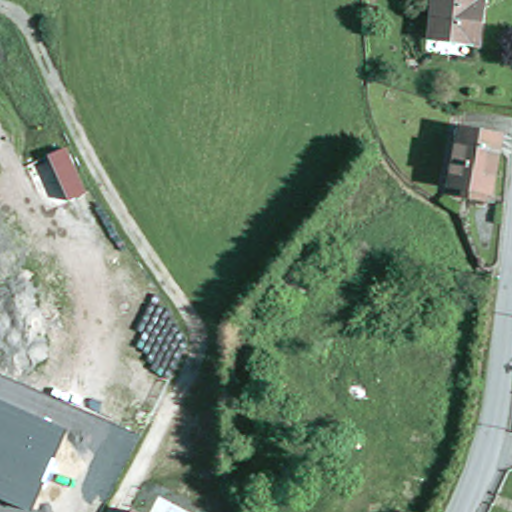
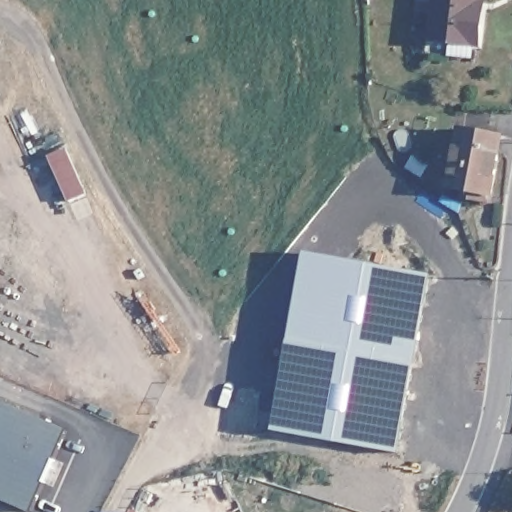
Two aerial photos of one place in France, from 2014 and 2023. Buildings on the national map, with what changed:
unchanged [(480,25),(477,44),(430,38),(435,0),(476,0),(475,3),(483,4),(480,25)]
unchanged [(475,195),(463,193),(465,184),(450,182),(460,124),(502,132),(492,190),(488,189),(486,198),(475,195)]
unchanged [(54,157),(71,150),(88,192),(68,200),(54,157)]
new [(305,251),(426,274),(396,449),(275,428),(305,251)]
unchanged [(33,512),(31,512),(0,498),(0,402),(68,433),(33,512)]
unchanged [(137,512),(125,512),(127,507),(137,512)]

